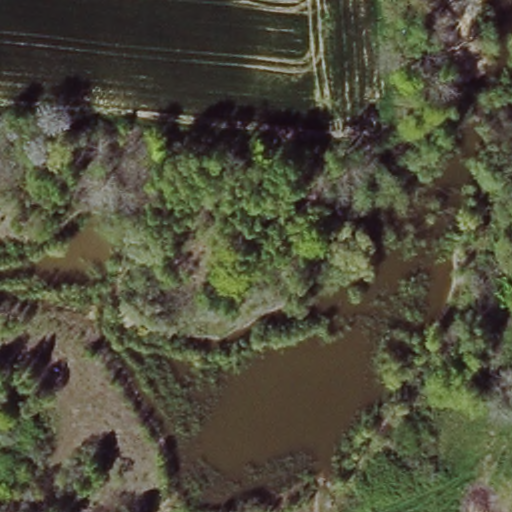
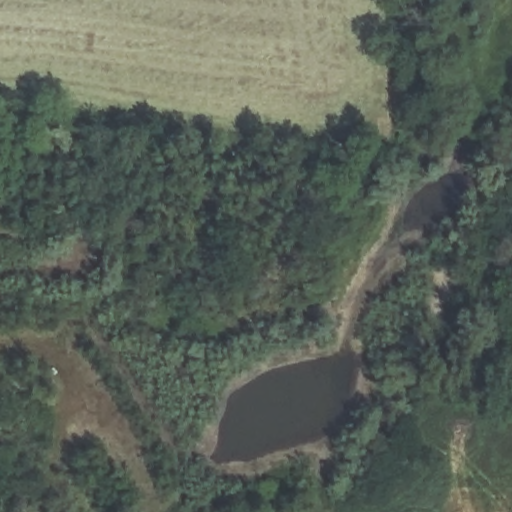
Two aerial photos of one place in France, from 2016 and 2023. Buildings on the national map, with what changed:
[]

